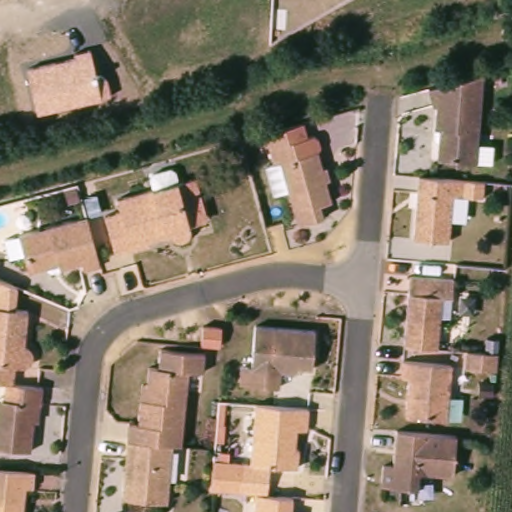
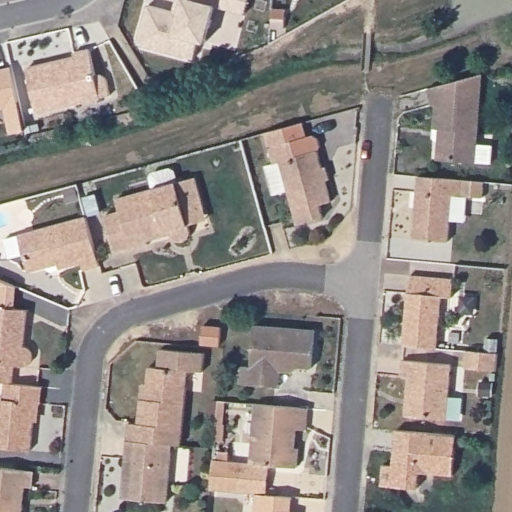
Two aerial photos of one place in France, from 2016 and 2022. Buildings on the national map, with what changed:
new [(150,5),(181,12),(183,0),(249,0),(246,12),(218,5),(208,40),(202,39),(196,57),(140,42),(150,5)]
unchanged [(98,74),(105,72),(111,95),(36,112),(26,66),(73,55),(72,50),(91,47),(98,74)]
new [(26,130),(11,133),(5,107),(0,108),(0,68),(12,65),(26,130)]
unchanged [(435,136),(436,127),(439,107),(433,107),(430,88),(484,73),(476,163),(438,159),(440,140),(439,140),(435,136)]
unchanged [(265,145),(301,135),(310,166),(316,165),(330,215),(318,218),(321,231),(298,238),(289,205),(275,209),(266,179),(274,177),(265,145)]
unchanged [(188,223),(188,231),(185,237),(179,240),(171,239),(165,236),(162,231),(145,235),(147,244),(115,253),(110,255),(99,217),(113,213),(109,199),(120,196),(151,187),(148,174),(175,167),(179,181),(192,178),(200,208),(203,220),(188,223)]
unchanged [(413,177),(461,181),(460,196),(447,195),(443,241),(409,238),(412,194),(413,177)]
unchanged [(76,188),(79,201),(68,204),(64,191),(76,188)]
unchanged [(3,245),(18,241),(84,220),(97,269),(81,274),(78,265),(56,272),(55,265),(28,275),(23,259),(8,263),(3,245)]
unchanged [(454,281),(452,297),(443,297),(438,347),(404,344),(410,279),(454,281)]
unchanged [(36,349),(35,360),(29,365),(16,365),(15,382),(6,381),(0,381),(0,280),(17,287),(18,287),(16,306),(29,308),(26,340),(34,343),(36,349)]
unchanged [(316,331),(313,369),(300,368),(295,373),(282,372),(281,388),(242,384),(243,367),(253,368),(256,326),(316,331)]
unchanged [(220,331),(219,345),(203,344),(205,329),(220,331)]
unchanged [(497,355),(495,372),(463,369),(465,352),(497,355)]
unchanged [(405,390),(406,377),(398,376),(399,363),(399,360),(449,365),(445,417),(410,414),(403,413),(405,390)]
unchanged [(143,404),(145,377),(184,381),(178,450),(171,449),(124,445),(125,430),(126,426),(133,427),(135,403),(143,404)]
unchanged [(0,445),(0,394),(6,395),(6,381),(15,382),(37,384),(44,385),(42,404),(36,403),(33,448),(0,445)]
unchanged [(304,429),(293,428),(292,447),(299,448),(297,466),(249,462),(253,402),(305,406),(304,424),(304,429)]
unchanged [(453,433),(449,473),(415,470),(414,486),(378,483),(380,463),(390,464),(391,446),(392,427),(453,433)]
unchanged [(124,445),(171,449),(166,503),(120,499),(123,464),(124,445)]
unchanged [(252,492),(238,490),(208,487),(211,457),(241,460),(249,462),(269,464),(266,493),(252,492)]
unchanged [(21,512),(0,512),(0,467),(25,470),(21,512)]
unchanged [(290,495),(288,512),(251,512),(252,492),(290,495)]

